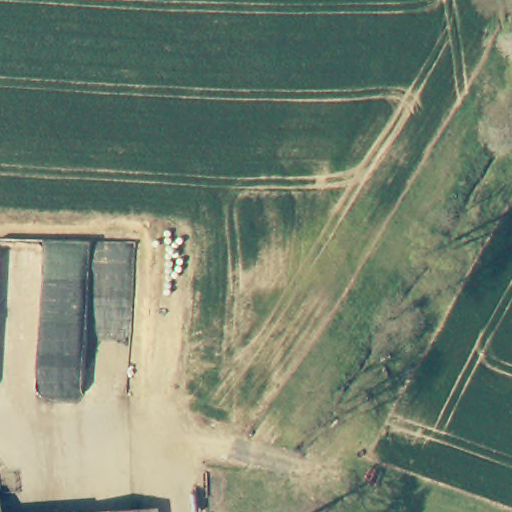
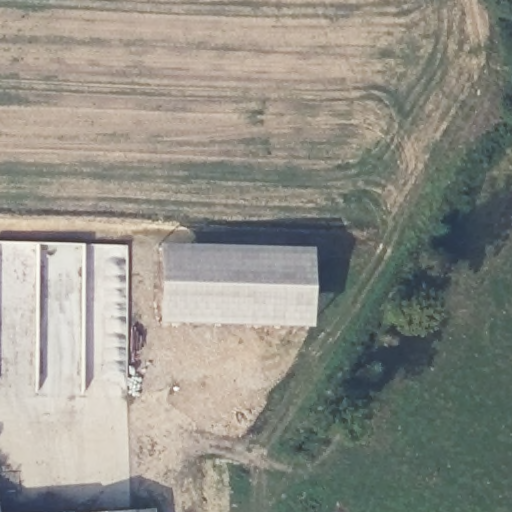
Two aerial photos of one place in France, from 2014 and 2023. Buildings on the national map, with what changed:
new [(312,329),(158,323),(160,243),(315,247),(312,329)]
unchanged [(107,512),(130,509),(143,508),(143,512),(107,512)]

